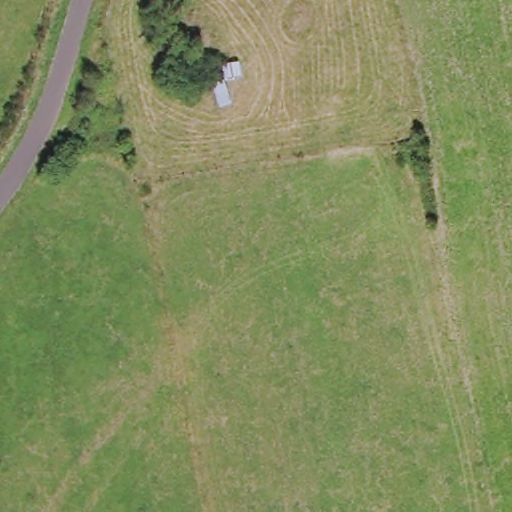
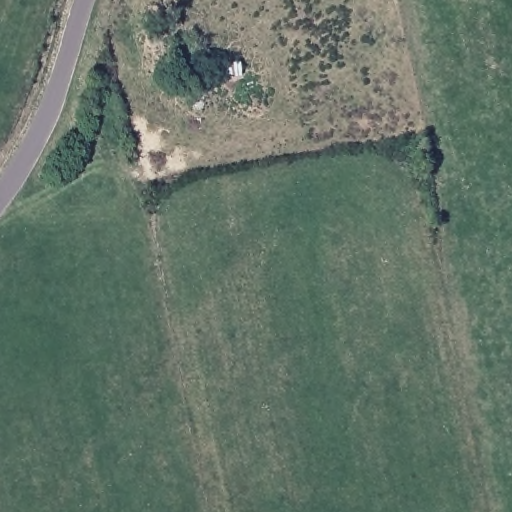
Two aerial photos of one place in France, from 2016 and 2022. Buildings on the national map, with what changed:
unchanged [(224,79),(223,65),(241,63),(242,77),(226,80),(233,106),(216,110),(208,85),(224,79)]

